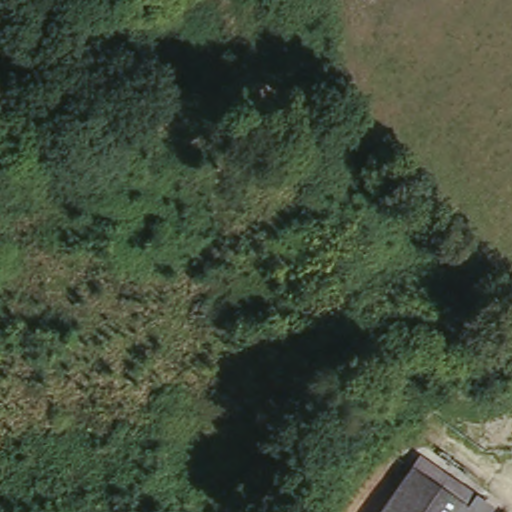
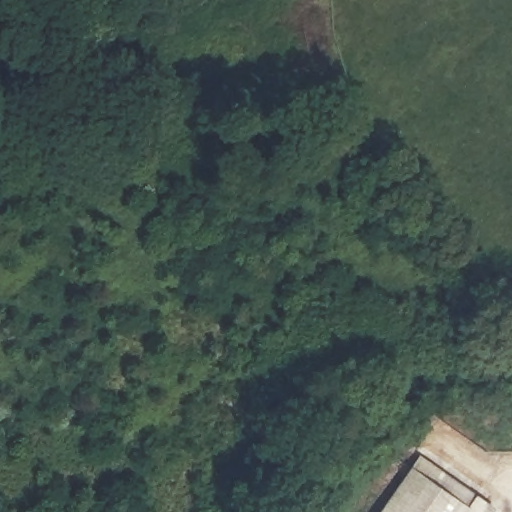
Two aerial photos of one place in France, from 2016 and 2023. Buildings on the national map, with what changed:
unchanged [(499,510),(498,512),(383,512),(420,457),(499,510)]

